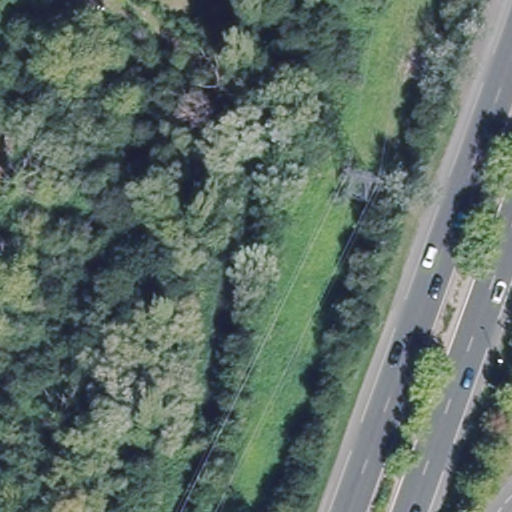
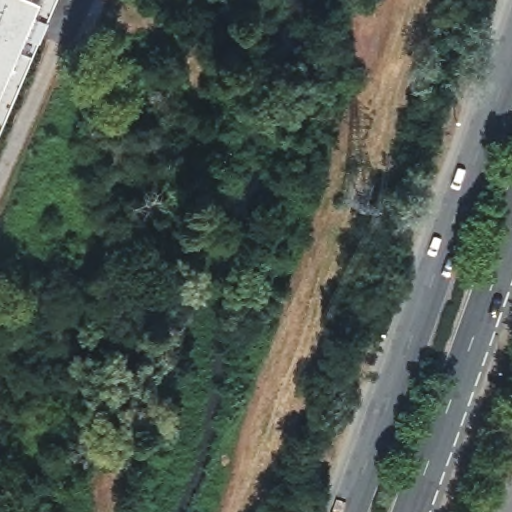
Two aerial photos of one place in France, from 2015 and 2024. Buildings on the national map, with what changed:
new [(0,0),(54,0),(0,129),(0,0)]

